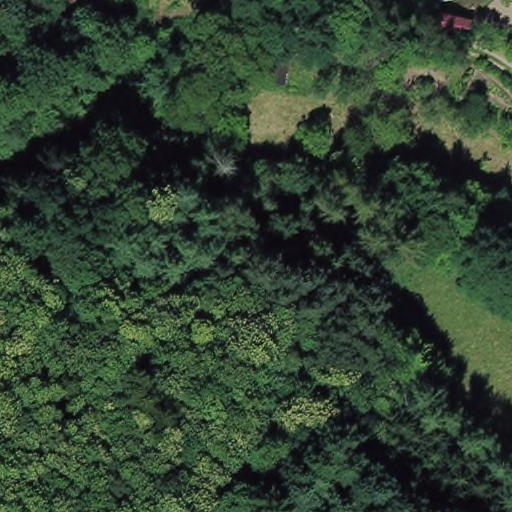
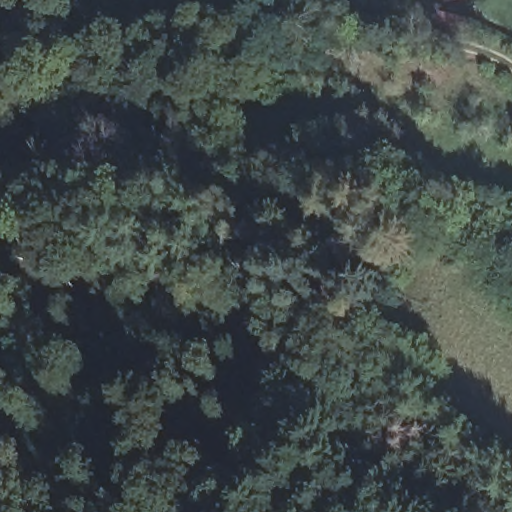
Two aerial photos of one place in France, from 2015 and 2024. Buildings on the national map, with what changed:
unchanged [(470,24),(464,41),(434,31),(440,12),(470,24)]

